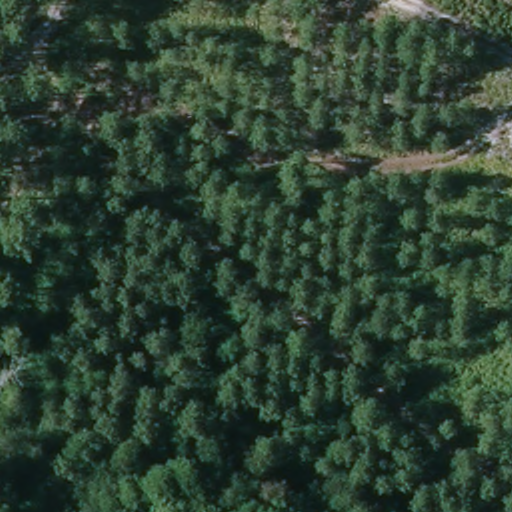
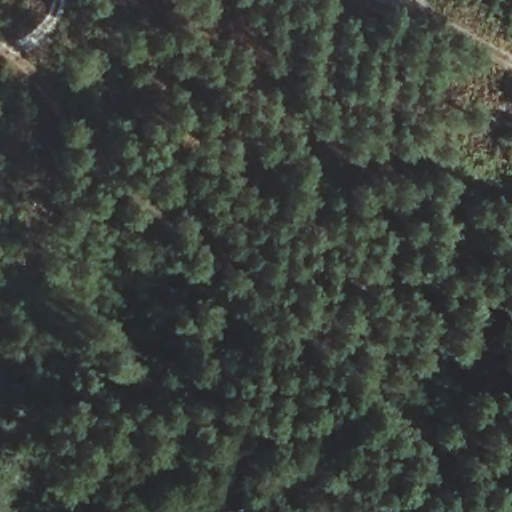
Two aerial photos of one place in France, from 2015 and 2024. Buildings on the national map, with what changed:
unchanged [(337,410),(352,381),(364,389),(350,417),(337,410)]

